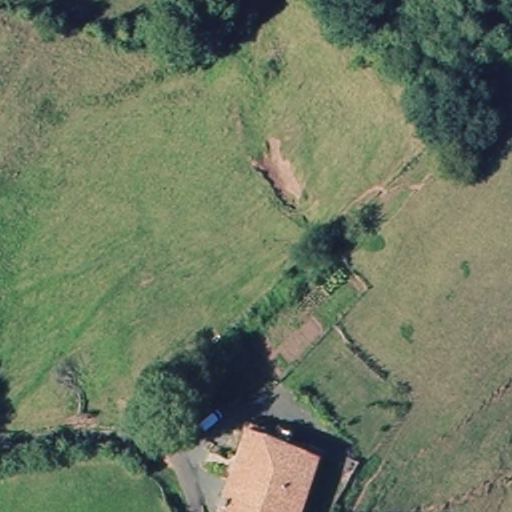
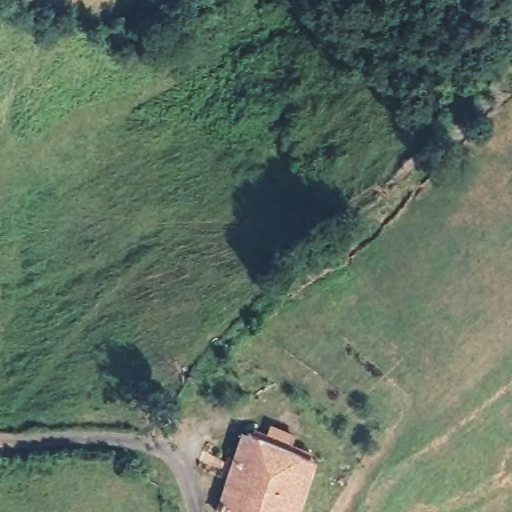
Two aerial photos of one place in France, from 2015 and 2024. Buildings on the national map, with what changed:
unchanged [(322,459),(298,512),(223,512),(220,511),(254,431),(322,459)]

